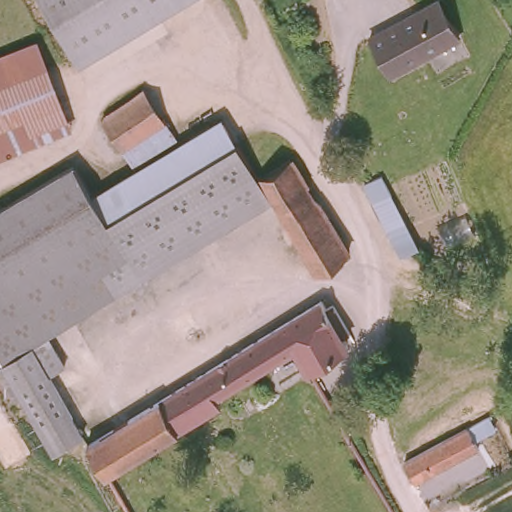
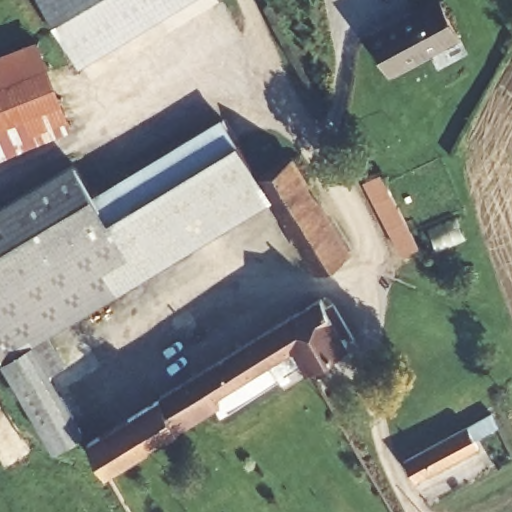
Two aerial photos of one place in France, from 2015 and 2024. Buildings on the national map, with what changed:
unchanged [(27,0),(186,0),(75,74),(27,0)]
unchanged [(439,0),(447,0),(468,36),(398,76),(375,37),(439,0)]
unchanged [(48,71),(60,102),(70,132),(0,159),(0,60),(38,45),(48,71)]
unchanged [(0,207),(74,161),(88,187),(222,114),(238,141),(255,180),(269,202),(52,334),(67,362),(51,370),(87,435),(55,452),(0,354),(0,207)]
unchanged [(256,180),(280,164),(288,159),(348,255),(315,274),(269,202),(255,180),(256,180)]
unchanged [(381,173),(421,247),(404,256),(363,184),(381,173)]
unchanged [(317,313),(326,308),(347,343),(326,355),(297,373),(285,356),(266,367),(260,371),(205,405),(207,410),(200,415),(195,418),(124,461),(123,462),(97,477),(89,465),(78,447),(95,437),(160,397),(167,392),(240,348),(284,321),(311,304),(317,313)]
unchanged [(420,485),(407,463),(426,452),(446,440),(468,426),(480,449),(457,462),(420,485)]

